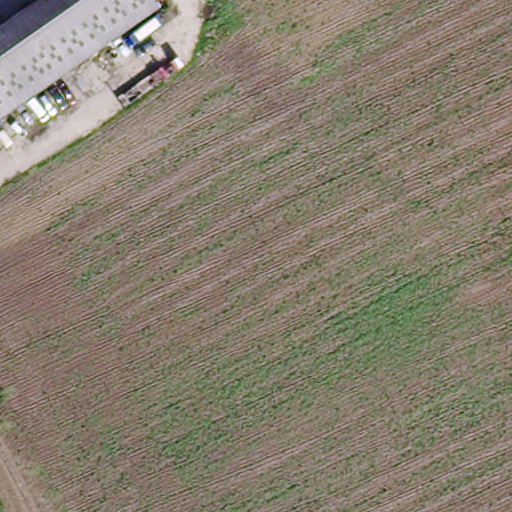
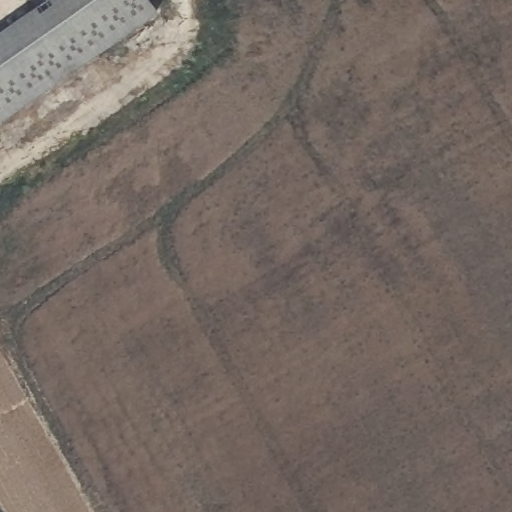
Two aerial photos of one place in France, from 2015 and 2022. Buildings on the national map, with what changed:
unchanged [(0,121),(0,30),(45,0),(149,0),(159,16),(27,102),(0,121)]

